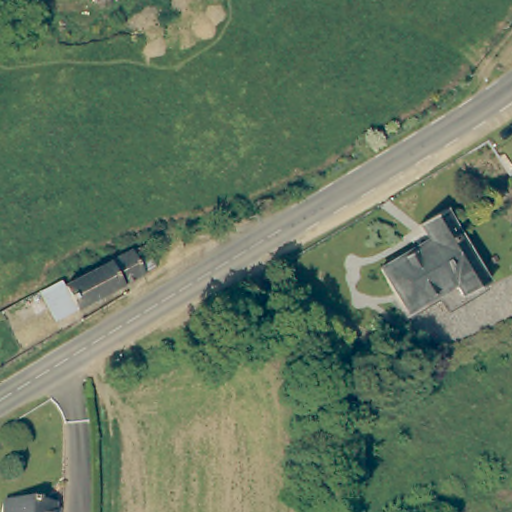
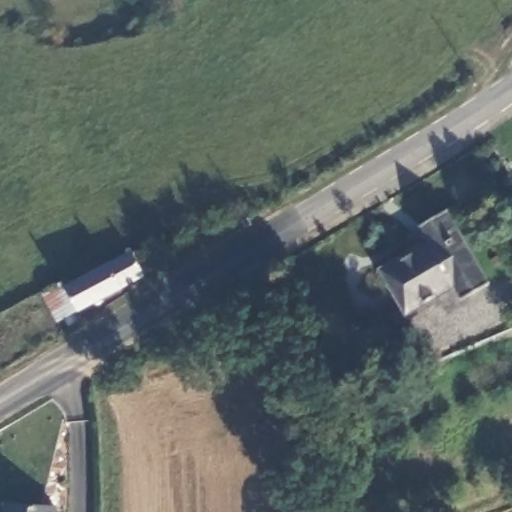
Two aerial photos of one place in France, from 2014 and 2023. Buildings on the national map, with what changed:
unchanged [(378,267),(429,242),(419,221),(447,207),(459,229),(488,283),(460,298),(452,284),(402,311),(378,267)]
unchanged [(42,297),(40,292),(65,279),(66,285),(130,252),(134,257),(152,252),(156,266),(140,274),(77,307),(55,320),(42,297)]
unchanged [(44,512),(4,512),(4,509),(44,512)]

